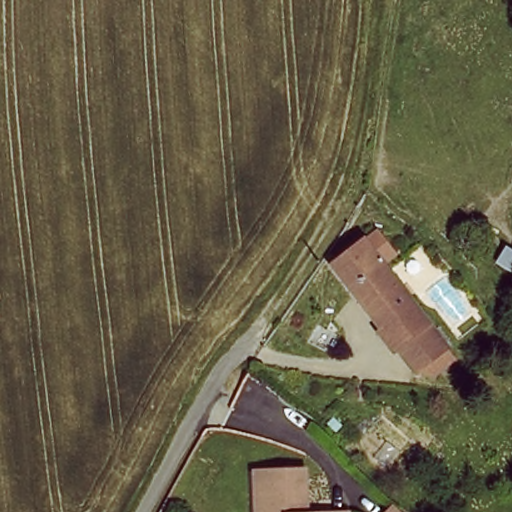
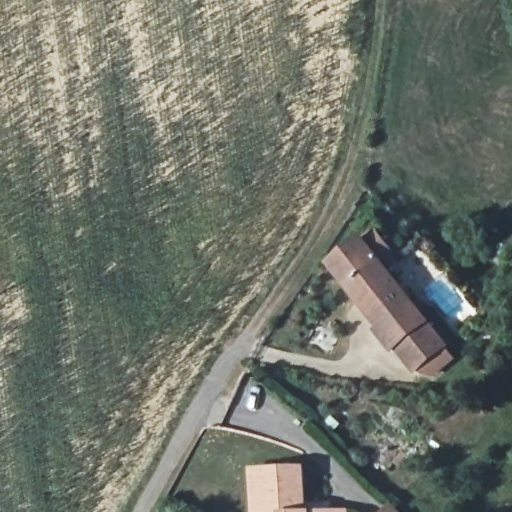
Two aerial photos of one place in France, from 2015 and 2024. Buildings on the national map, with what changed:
unchanged [(400,348),(394,352),(381,336),(384,331),(334,266),(367,241),(432,325),(400,348)]
unchanged [(432,325),(451,348),(419,372),(400,348),(432,325)]
unchanged [(255,470),(306,468),(302,512),(255,512),(255,470)]
unchanged [(387,506),(394,512),(381,512),(387,506)]

